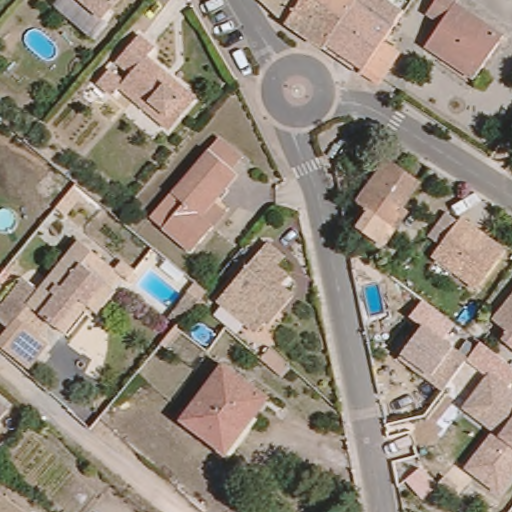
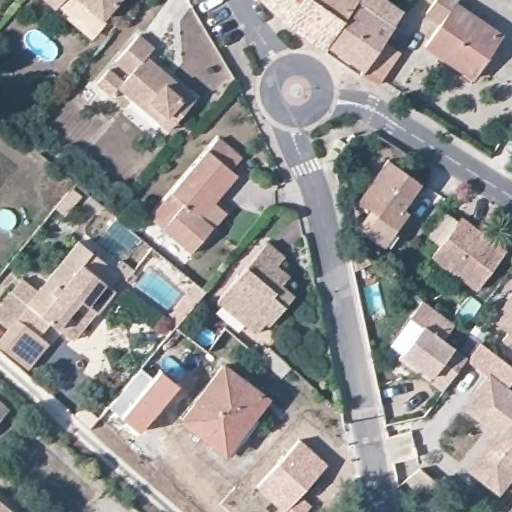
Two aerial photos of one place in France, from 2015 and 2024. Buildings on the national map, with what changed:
unchanged [(106,20),(86,40),(55,7),(62,0),(83,0),(106,20)]
unchanged [(106,20),(83,0),(124,0),(106,20)]
unchanged [(355,2),(323,50),(309,41),(289,27),(278,19),(268,10),(259,0),(351,0),(355,2)]
unchanged [(409,1),(390,27),(355,2),(356,0),(407,0),(409,1)]
unchanged [(440,67),(420,54),(439,25),(424,16),(435,0),(460,0),(463,2),(460,11),(506,41),(483,79),(476,91),(440,67)]
unchanged [(376,85),(359,74),(323,50),(355,2),(390,27),(381,40),(398,51),(376,85)]
unchanged [(158,134),(153,128),(114,91),(107,98),(93,84),(105,72),(118,85),(126,77),(112,64),(136,39),(151,53),(143,61),(161,79),(165,83),(182,99),(187,104),(158,134)]
unchanged [(186,263),(153,238),(164,224),(151,213),(161,201),(207,148),(217,135),(241,154),(232,167),(238,172),(229,182),(233,186),(211,212),(223,222),(206,241),(186,263)]
unchanged [(364,210),(353,201),(383,159),(420,184),(403,211),(410,215),(386,250),(352,227),(364,210)]
unchanged [(427,260),(436,249),(424,240),(442,215),(454,225),(456,222),(466,229),(474,235),(501,256),(472,294),(427,260)]
unchanged [(266,329),(257,341),(217,310),(262,251),(280,264),(273,273),(285,283),(278,293),(291,303),(275,323),(269,331),(266,329)]
unchanged [(72,322),(76,326),(54,344),(44,333),(33,342),(40,353),(19,370),(0,353),(0,296),(22,278),(35,294),(85,253),(114,288),(101,298),(110,309),(87,327),(81,332),(78,329),(84,323),(79,317),(72,322)]
unchanged [(500,342),(506,334),(489,322),(512,290),(512,351),(500,342)]
unchanged [(201,303),(188,315),(182,308),(195,296),(201,303)]
unchanged [(416,373),(397,359),(422,327),(452,351),(430,378),(427,382),(416,373)]
new [(152,376),(159,368),(179,384),(139,431),(121,416),(108,405),(140,367),(152,376)]
unchanged [(265,408),(261,413),(255,409),(243,420),(236,417),(207,450),(173,422),(220,368),(265,408)]
unchanged [(460,472),(487,432),(458,413),(487,375),(512,393),(512,480),(499,499),(460,472)]
unchanged [(0,424),(0,391),(17,406),(0,424)]
unchanged [(243,420),(255,409),(261,413),(265,408),(274,415),(267,424),(259,416),(221,461),(207,450),(236,417),(243,420)]
new [(326,463),(301,494),(311,504),(304,512),(281,512),(282,510),(256,485),(299,438),(326,463)]
unchanged [(436,512),(429,512),(408,490),(422,477),(446,502),(436,512)]
new [(0,512),(0,499),(15,512),(0,512)]

